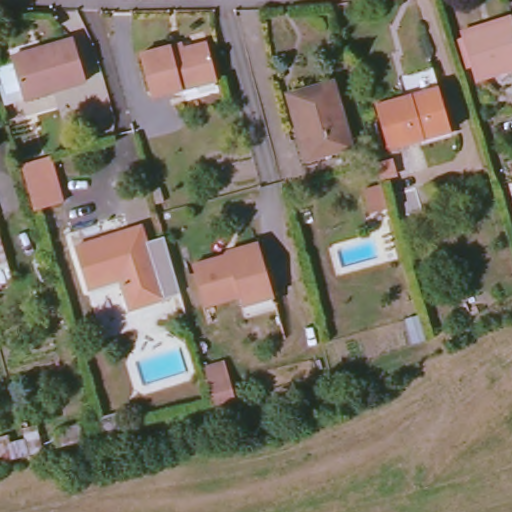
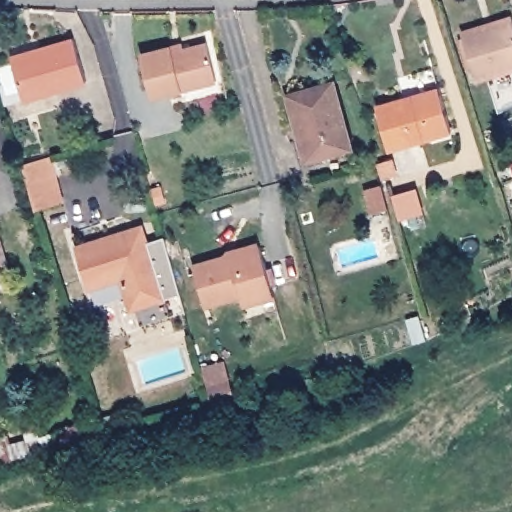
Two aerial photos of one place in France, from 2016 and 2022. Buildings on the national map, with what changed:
unchanged [(512,20),(512,66),(479,79),(462,39),(512,20)]
unchanged [(53,47),(82,39),(94,83),(32,100),(16,104),(4,61),(53,47)]
unchanged [(215,80),(149,95),(140,51),(170,44),(182,42),(183,48),(207,43),(215,80)]
unchanged [(433,86),(449,131),(390,153),(373,107),(433,86)]
unchanged [(337,90),(345,155),(298,161),(290,96),(337,90)]
unchanged [(36,211),(24,165),(52,158),(64,203),(36,211)]
unchanged [(372,213),(370,206),(365,188),(382,183),(387,201),(389,208),(372,213)]
unchanged [(77,243),(144,224),(164,297),(130,307),(121,277),(88,286),(77,243)]
unchanged [(0,274),(0,242),(9,271),(0,274)]
unchanged [(240,303),(237,294),(205,302),(194,259),(260,242),(270,285),(272,295),(240,303)]
unchanged [(182,351),(188,375),(145,387),(138,363),(182,351)]
unchanged [(110,397),(114,412),(92,418),(88,403),(110,397)]
unchanged [(10,443),(37,436),(41,452),(0,464),(0,437),(7,435),(10,443)]

